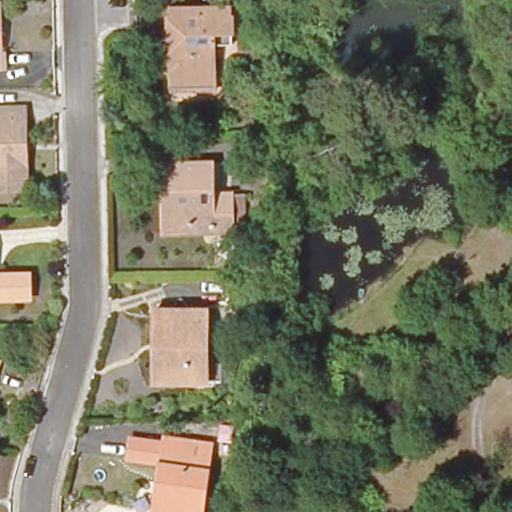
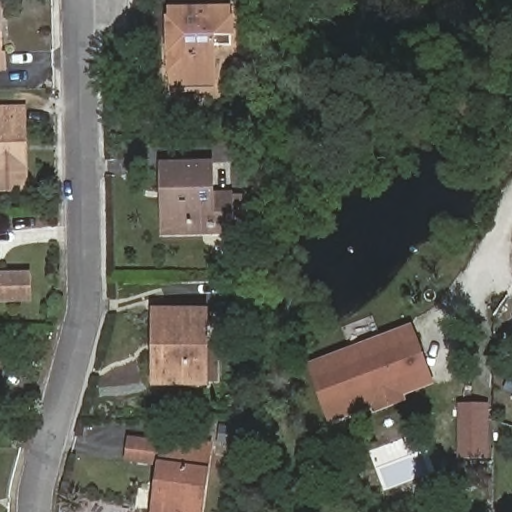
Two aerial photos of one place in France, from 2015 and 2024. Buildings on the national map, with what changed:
unchanged [(169,4),(233,4),(233,40),(216,40),(216,81),(170,80),(169,4)]
unchanged [(1,12),(3,58),(6,58),(7,75),(0,75),(0,12),(1,12)]
unchanged [(28,104),(30,183),(0,183),(0,104),(28,104)]
unchanged [(512,162),(510,163),(510,138),(512,137),(512,162)]
unchanged [(237,230),(226,231),(206,231),(206,224),(165,224),(164,189),(157,189),(156,165),(206,164),(206,195),(225,194),(237,194),(237,230)]
unchanged [(24,275),(25,299),(0,300),(0,276),(24,275)]
unchanged [(201,364),(201,384),(158,384),(158,359),(166,359),(166,333),(159,333),(159,310),(211,310),(211,364),(201,364)]
new [(372,407),(370,402),(327,418),(307,366),(407,328),(427,381),(396,392),(397,398),(372,407)]
unchanged [(4,367),(0,376),(0,366),(4,367)]
new [(489,459),(458,459),(458,404),(490,404),(489,459)]
unchanged [(210,512),(154,512),(161,468),(171,469),(176,434),(219,441),(210,512)]

